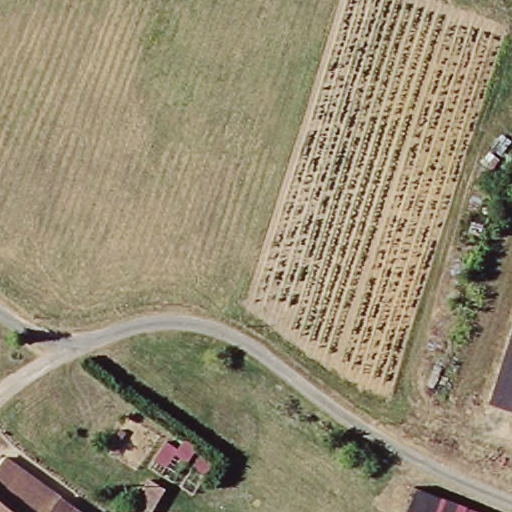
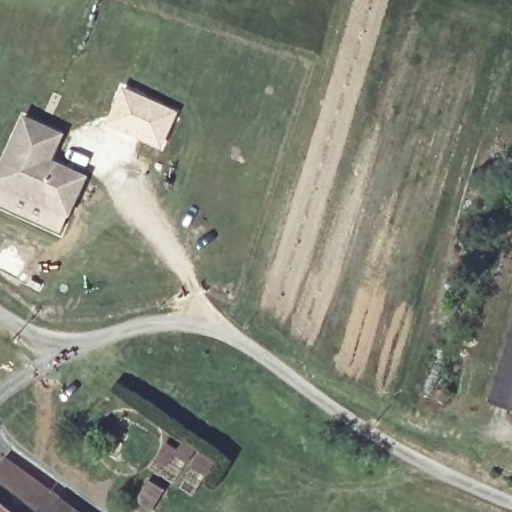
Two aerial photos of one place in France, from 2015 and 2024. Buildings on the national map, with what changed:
new [(121,83),(178,111),(161,151),(103,122),(121,83)]
new [(22,114),(65,134),(53,161),(87,175),(69,216),(0,186),(0,165),(22,114)]
unchanged [(512,328),(512,405),(490,398),(512,328)]
unchanged [(9,450),(90,512),(0,512),(0,461),(9,450)]
demolished [(474,512),(412,512),(406,509),(415,487),(474,512)]

